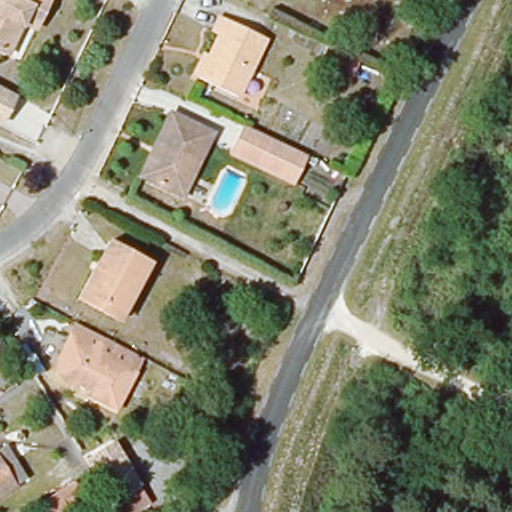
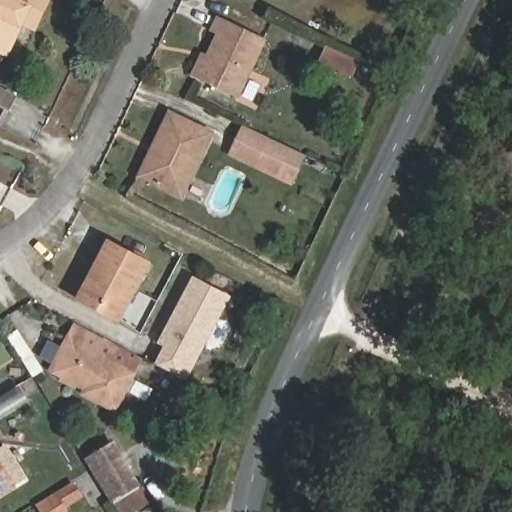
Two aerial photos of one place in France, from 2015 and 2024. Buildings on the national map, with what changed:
unchanged [(25,18),(8,55),(0,51),(0,0),(48,0),(38,24),(25,18)]
unchanged [(267,40),(239,97),(197,77),(217,34),(210,30),(218,16),(267,40)]
unchanged [(349,55),(342,70),(317,59),(324,43),(324,42),(349,55)]
unchanged [(0,122),(0,88),(15,96),(1,122),(0,122)]
unchanged [(144,179),(159,147),(155,145),(170,114),(212,134),(182,196),(144,179)]
unchanged [(307,156),(294,183),(280,176),(235,155),(248,127),(293,149),(304,155),(307,156)]
unchanged [(149,264),(119,320),(79,298),(109,242),(149,264)]
new [(164,345),(158,342),(193,275),(232,296),(188,380),(155,362),(164,345)]
unchanged [(123,348),(142,358),(134,373),(116,410),(84,393),(85,388),(52,370),(58,358),(76,323),(80,326),(102,337),(123,348)]
unchanged [(104,433),(130,475),(104,491),(80,451),(78,449),(104,433)]
unchanged [(0,495),(0,465),(14,487),(0,495)]
unchanged [(63,512),(44,512),(39,505),(56,495),(74,485),(81,496),(64,506),(66,510),(63,512)]

